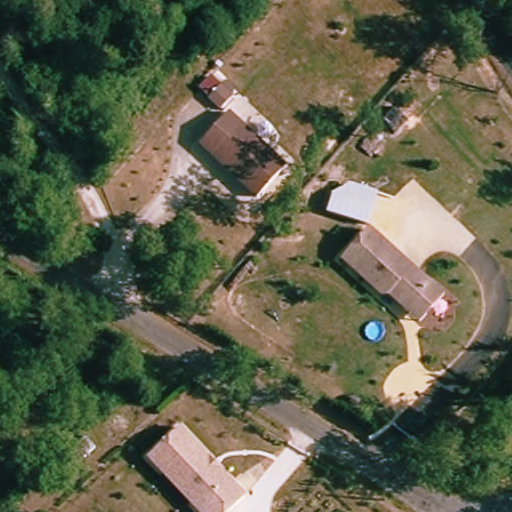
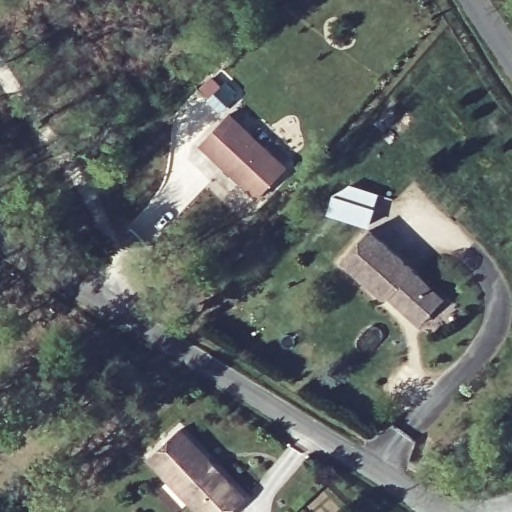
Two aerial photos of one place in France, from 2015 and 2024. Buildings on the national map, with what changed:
unchanged [(206,143),(236,113),(291,164),(262,195),(206,143)]
unchanged [(390,293),(381,294),(375,288),(367,280),(341,256),(367,228),(417,275),(431,287),(442,297),(418,321),(407,311),(395,300),(390,293)]
unchanged [(193,512),(150,453),(185,428),(209,460),(220,475),(242,503),(230,512),(193,512)]

